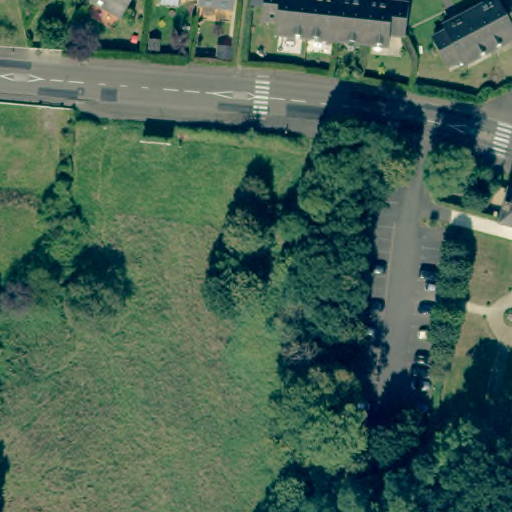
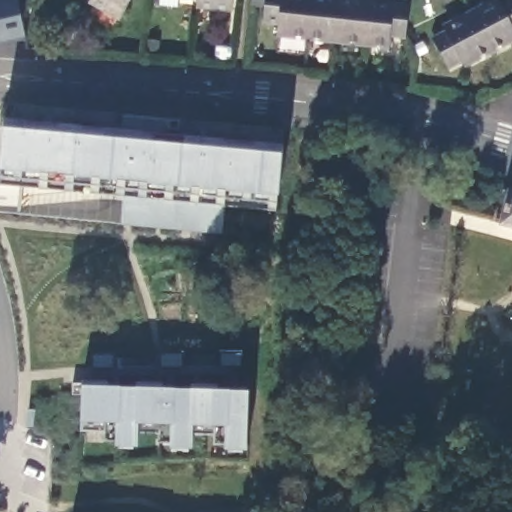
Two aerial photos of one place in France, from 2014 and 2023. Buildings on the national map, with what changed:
unchanged [(116,11),(96,0),(122,0),(116,11)]
unchanged [(226,2),(192,0),(226,0),(226,2)]
unchanged [(277,23),(278,12),(262,10),(263,0),(309,0),(306,26),(277,23)]
unchanged [(309,0),(341,0),(337,30),(306,26),(309,0)]
unchanged [(341,0),(370,0),(366,32),(337,30),(341,0)]
unchanged [(406,25),(391,24),(390,35),(366,32),(370,0),(408,0),(406,25)]
unchanged [(512,24),(510,25),(512,28),(512,31),(486,44),(465,7),(479,0),(512,0),(512,24)]
unchanged [(438,53),(428,34),(442,27),(439,22),(465,7),(486,44),(458,59),(455,54),(442,60),(438,53)]
new [(283,129),(284,142),(284,152),(279,195),(279,203),(278,210),(226,205),(223,233),(122,225),(125,197),(1,183),(2,175),(0,171),(0,165),(4,125),(5,116),(13,117),(15,104),(125,114),(171,118),(181,119),(181,121),(273,128),(283,129)]
demolished [(36,145),(33,169),(30,172),(27,189),(0,186),(0,142),(36,145)]
unchanged [(505,187),(512,189),(512,226),(495,221),(505,187)]
new [(248,449),(225,448),(226,443),(216,442),(214,433),(194,433),(194,448),(190,448),(189,450),(173,450),(171,447),(171,441),(161,441),(160,432),(140,432),(139,447),(134,446),(133,448),(119,448),(120,445),(117,446),(117,440),(106,439),(106,431),(82,430),(83,420),(84,384),(85,379),(91,379),(92,368),(92,351),(115,351),(116,366),(159,366),(159,350),(184,350),(185,365),(220,365),(220,349),(243,349),(244,367),(238,367),(235,388),(250,389),(248,449)]

